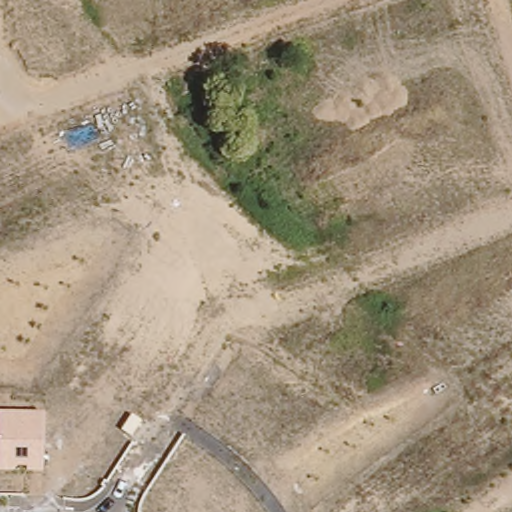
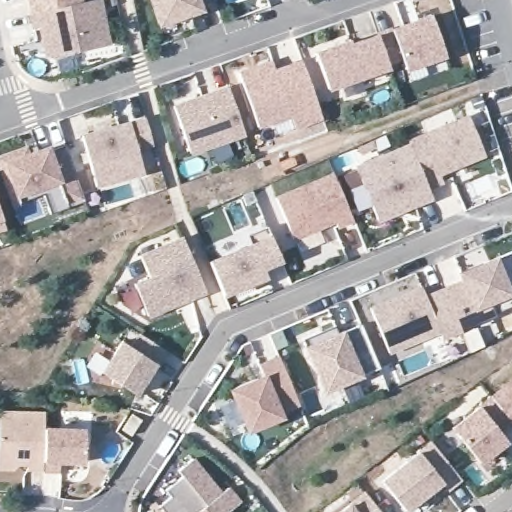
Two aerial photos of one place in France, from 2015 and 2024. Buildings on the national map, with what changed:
new [(38,29),(32,30),(27,0),(83,0),(83,2),(92,0),(101,0),(112,43),(45,57),(38,29)]
new [(188,9),(190,13),(159,24),(150,0),(213,0),(188,9)]
new [(431,15),(445,54),(405,68),(402,57),(387,62),(377,35),(431,15)]
new [(388,66),(327,88),(315,52),(350,40),(352,44),(377,35),(388,66)]
new [(271,59),(275,67),(300,57),(323,120),(295,130),(292,118),(260,130),(238,70),(271,59)]
new [(228,87),(245,134),(186,155),(170,108),(228,87)]
new [(468,115),(485,155),(440,174),(443,182),(428,189),(410,145),(408,140),(468,115)]
new [(145,116),(152,141),(136,145),(142,170),(100,181),(86,132),(145,116)]
new [(39,154),(65,144),(86,201),(49,214),(40,187),(10,197),(0,168),(0,157),(25,148),(36,144),(39,154)]
new [(428,189),(432,197),(378,220),(360,179),(356,168),(379,158),(410,145),(428,189)]
new [(333,174),(353,219),(337,226),(334,220),(292,238),(276,197),(333,174)]
new [(0,213),(2,217),(5,229),(0,230),(0,213)]
new [(248,235),(267,226),(271,235),(281,260),(263,266),(267,276),(223,295),(209,261),(252,244),(248,235)]
new [(160,311),(147,282),(162,275),(153,253),(184,240),(205,291),(190,298),(175,304),(160,311)]
new [(460,273),(466,270),(512,251),(512,253),(512,279),(505,282),(512,301),(512,307),(460,328),(444,289),(463,280),(460,273)]
new [(422,286),(425,296),(444,289),(460,328),(462,330),(442,338),(438,331),(388,352),(370,308),(422,286)]
new [(339,321),(343,332),(361,325),(378,366),(324,389),(302,336),(325,327),(339,321)]
new [(122,340),(132,347),(140,333),(164,348),(135,393),(102,371),(122,340)]
new [(263,376),(259,365),(279,357),(298,401),(278,410),(280,415),(247,429),(230,390),(263,376)]
new [(512,381),(512,422),(510,420),(498,430),(507,440),(480,462),(452,428),(512,381)]
unchanged [(47,473),(0,472),(0,409),(47,410),(47,473)]
new [(87,465),(47,467),(47,426),(86,425),(87,465)]
new [(432,442),(461,478),(447,490),(441,482),(406,510),(383,480),(432,442)]
unchanged [(165,489),(182,475),(178,470),(192,457),(220,492),(227,487),(240,502),(227,512),(164,512),(158,505),(170,495),(165,489)]
new [(381,512),(340,512),(365,492),(381,512)]

